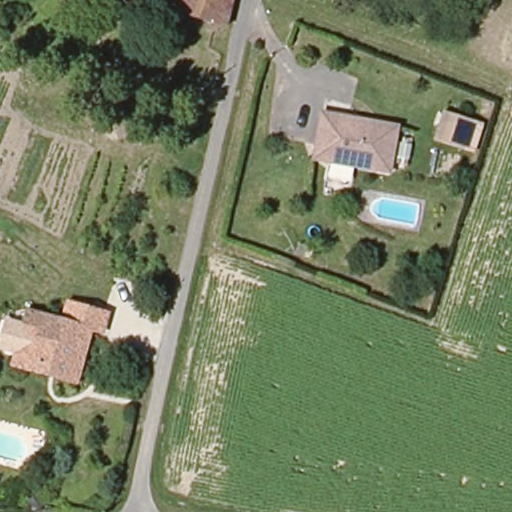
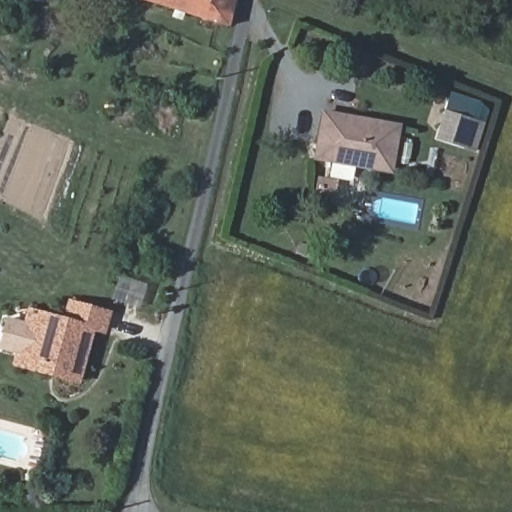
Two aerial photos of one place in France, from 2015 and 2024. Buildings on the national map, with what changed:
unchanged [(230,35),(122,0),(237,0),(230,35)]
unchanged [(391,167),(315,155),(322,111),(398,122),(391,167)]
unchanged [(468,119),(459,147),(431,139),(439,111),(468,119)]
unchanged [(69,321),(76,302),(110,314),(104,334),(97,332),(80,383),(14,361),(31,308),(69,321)]

